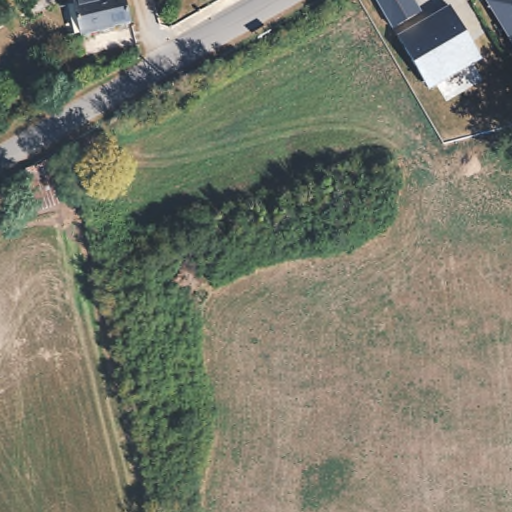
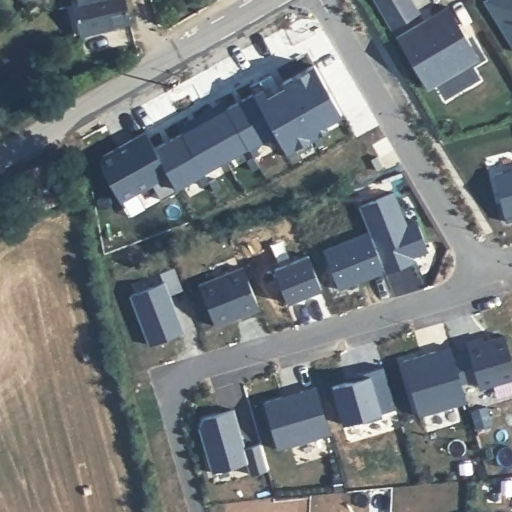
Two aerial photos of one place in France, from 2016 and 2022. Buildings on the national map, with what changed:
unchanged [(72,1),(76,0),(124,0),(130,22),(112,26),(113,28),(80,36),(72,1)]
unchanged [(390,24),(377,0),(408,0),(415,15),(390,24)]
unchanged [(485,0),(512,0),(512,51),(482,2),(485,0)]
new [(427,16),(446,6),(475,59),(423,88),(393,36),(421,20),(427,16)]
new [(326,123),(328,128),(318,133),(319,134),(311,139),(310,136),(295,146),(287,151),(277,136),(177,188),(178,190),(161,199),(153,184),(121,200),(100,156),(146,131),(154,148),(253,94),(264,88),(267,94),(282,85),(281,81),(314,63),(342,114),(326,123)]
new [(506,217),(504,217),(493,174),(512,168),(512,221),(507,223),(506,217)]
new [(414,258),(416,262),(387,273),(371,232),(360,206),(395,192),(408,223),(417,219),(431,251),(414,258)]
new [(371,232),(387,273),(342,290),(326,250),(371,232)]
new [(307,256),(321,290),(287,304),(273,269),(307,256)]
new [(160,273),(174,267),(182,290),(169,296),(174,309),(182,332),(150,345),(130,295),(163,282),(160,273)]
new [(242,268),(258,309),(215,326),(199,285),(242,268)]
new [(466,343),(482,338),(483,342),(504,336),(512,364),(512,379),(478,389),(476,379),(461,384),(452,357),(468,352),(466,343)]
new [(450,347),(452,357),(461,384),(466,403),(418,417),(402,362),(450,347)]
new [(300,392),(316,387),(330,434),(277,449),(263,402),(282,397),(300,392)]
new [(202,419),(232,410),(244,449),(260,444),(267,470),(250,475),(247,463),(212,473),(199,427),(202,419)]

